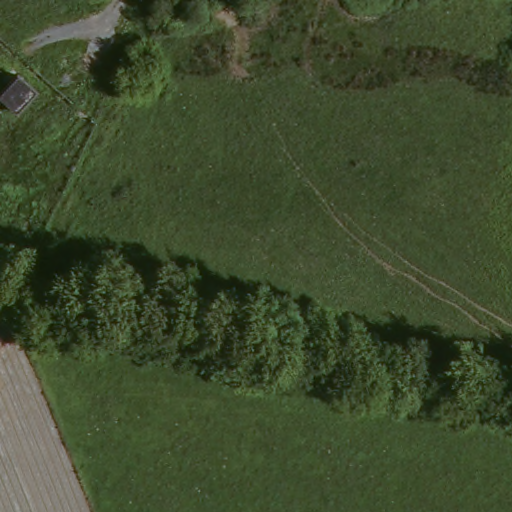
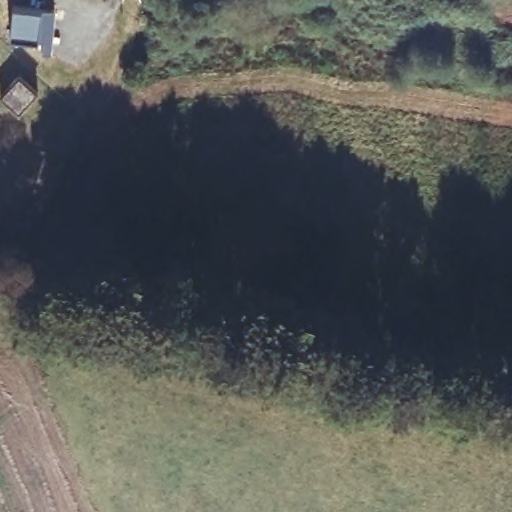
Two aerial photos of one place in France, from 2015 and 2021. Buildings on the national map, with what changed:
new [(56,11),(51,55),(41,54),(43,40),(37,39),(11,36),(14,6),(43,10),(56,11)]
unchanged [(35,90),(17,110),(1,96),(19,75),(35,90)]

